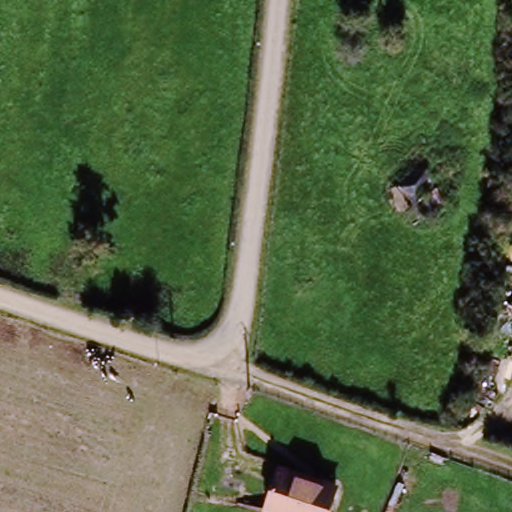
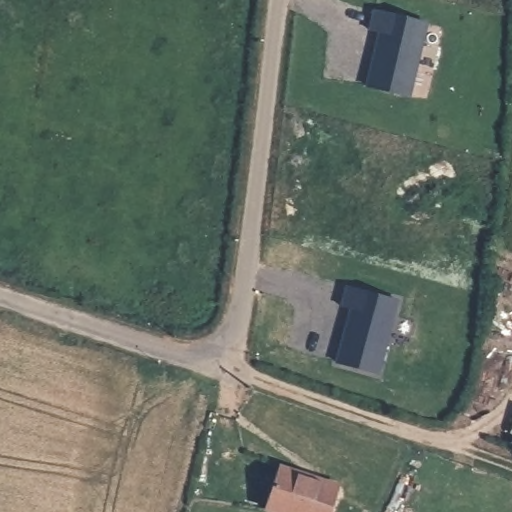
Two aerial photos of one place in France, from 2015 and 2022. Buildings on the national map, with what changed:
new [(429,22),(411,99),(365,87),(378,34),(369,31),(373,11),(429,22)]
demolished [(460,184),(406,214),(395,195),(449,165),(460,184)]
new [(399,301),(378,374),(336,363),(351,310),(343,307),(346,287),(399,301)]
demolished [(512,353),(498,348),(512,297),(512,353)]
new [(512,428),(512,434),(510,433),(512,428)]
unchanged [(276,467),(290,471),(289,478),(333,490),(325,512),(260,512),(276,467)]

